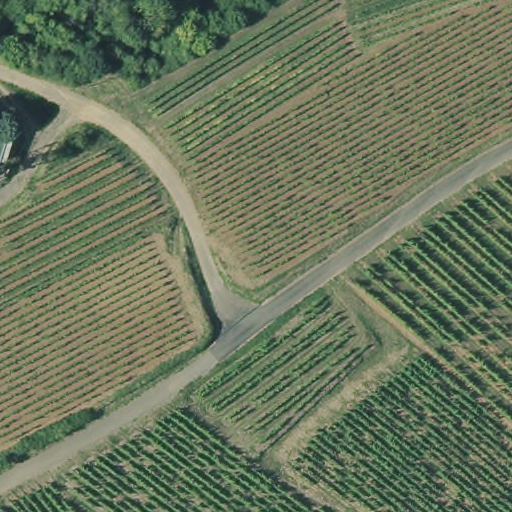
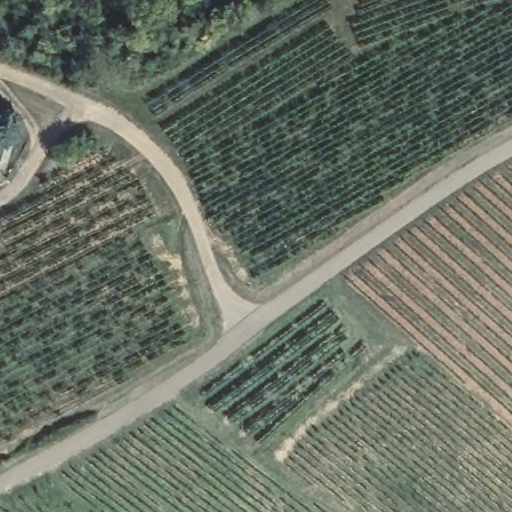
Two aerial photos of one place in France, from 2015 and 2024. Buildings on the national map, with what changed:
unchanged [(9,130),(0,159),(0,128),(9,130)]

